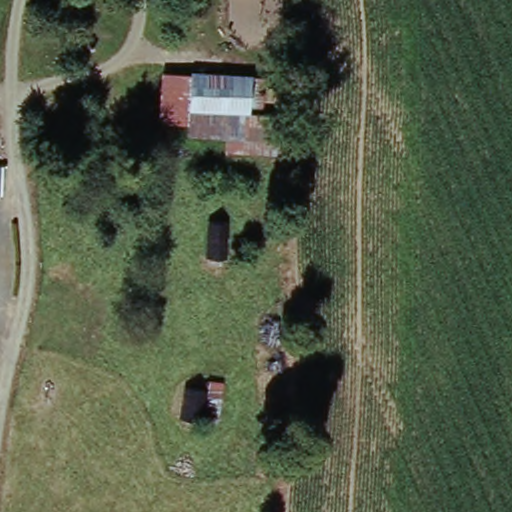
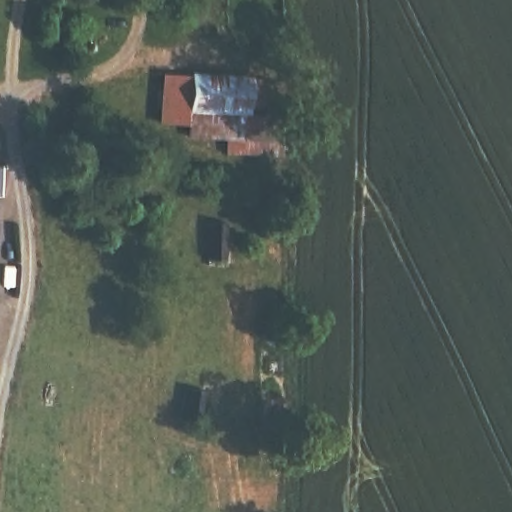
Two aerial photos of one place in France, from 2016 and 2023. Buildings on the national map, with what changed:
unchanged [(227,153),(229,135),(193,134),(194,124),(161,123),(164,73),(277,75),(277,116),(300,121),(298,152),(227,153)]
unchanged [(233,223),(226,261),(211,259),(216,220),(233,223)]
unchanged [(247,384),(244,412),(215,408),(219,381),(247,384)]

